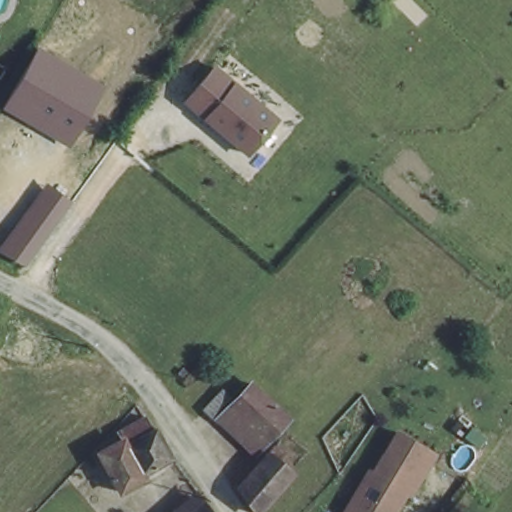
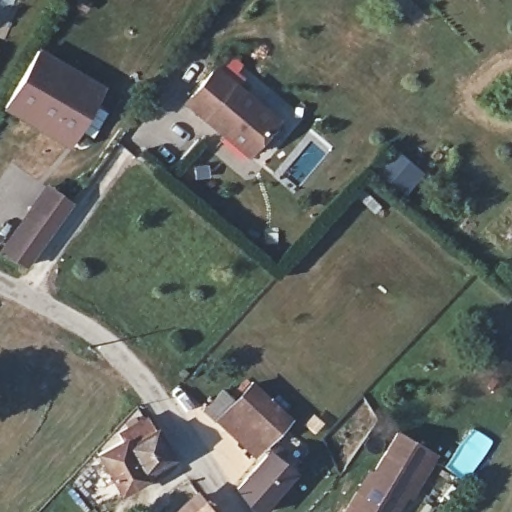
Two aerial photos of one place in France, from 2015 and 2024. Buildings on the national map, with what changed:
unchanged [(105,85),(68,147),(2,109),(39,47),(105,85)]
unchanged [(246,157),(181,101),(212,64),(278,119),(246,157)]
new [(405,195),(372,170),(390,146),(424,171),(405,195)]
unchanged [(72,201),(26,268),(0,251),(0,249),(46,182),(72,201)]
unchanged [(219,426),(221,423),(202,407),(221,387),(238,402),(249,390),(286,423),(280,428),(263,446),(254,455),(219,426)]
unchanged [(140,483),(141,487),(127,497),(102,462),(122,447),(115,437),(136,412),(139,407),(176,457),(140,483)]
unchanged [(373,468),(393,426),(432,446),(410,488),(407,487),(394,512),(345,512),(368,466),(373,468)]
unchanged [(270,450),(282,461),(276,467),(286,476),(252,512),(246,512),(232,491),(270,450)]
unchanged [(215,512),(195,512),(207,500),(215,512)]

